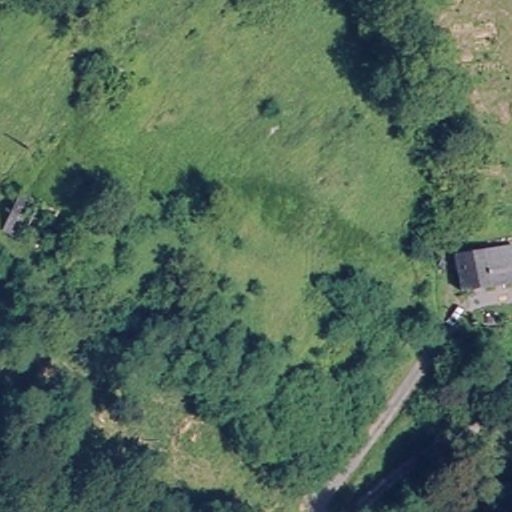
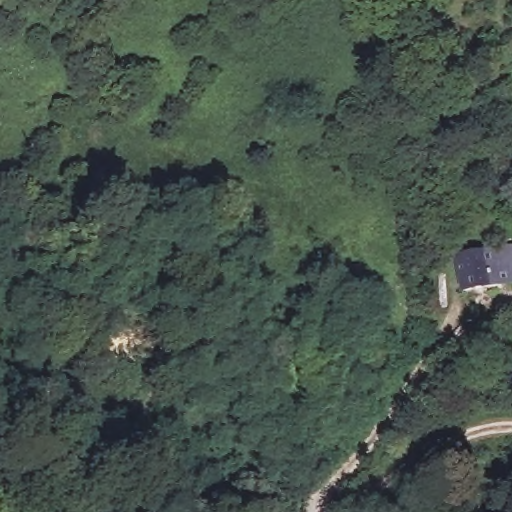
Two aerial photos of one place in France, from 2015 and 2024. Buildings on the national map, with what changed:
unchanged [(98,55),(129,73),(108,92),(79,70),(98,55)]
unchanged [(62,217),(45,249),(2,229),(21,195),(62,217)]
unchanged [(457,259),(512,255),(512,292),(457,296),(457,259)]

